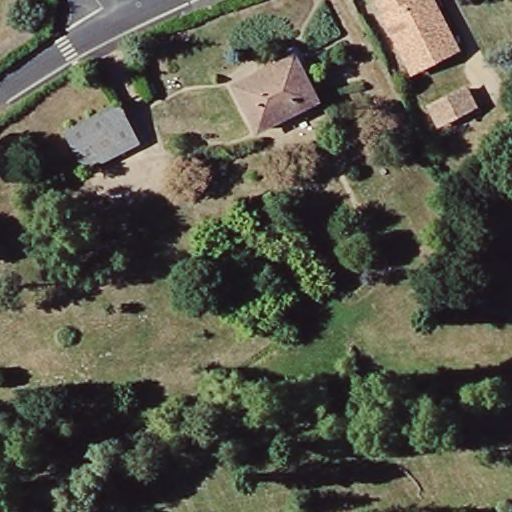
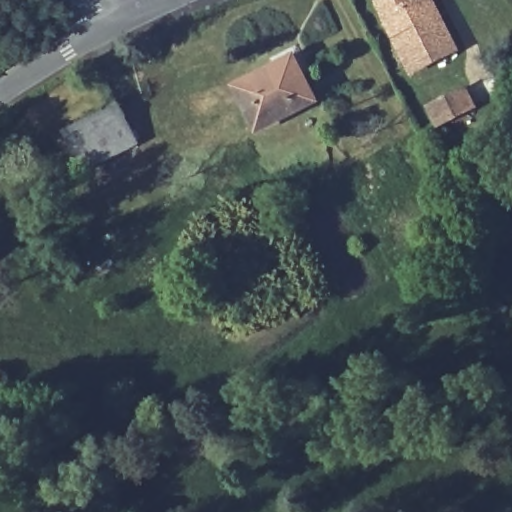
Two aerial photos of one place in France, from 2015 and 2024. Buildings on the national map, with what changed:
unchanged [(408,70),(372,3),(377,0),(426,0),(443,30),(452,46),(408,70)]
unchanged [(313,101),(255,131),(233,88),(292,59),(313,101)]
unchanged [(433,118),(469,99),(477,117),(441,135),(433,118)]
unchanged [(66,144),(61,135),(115,107),(134,144),(80,171),(66,144)]

